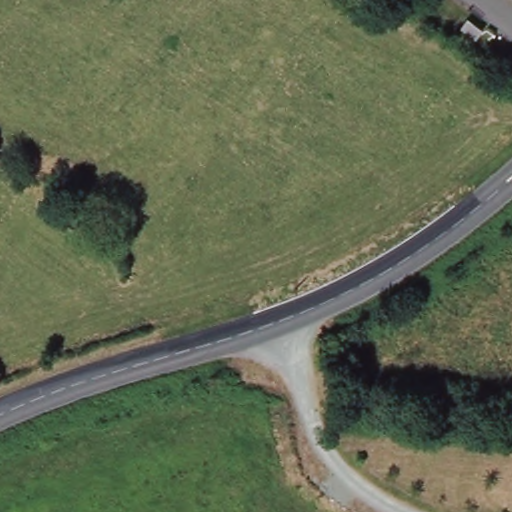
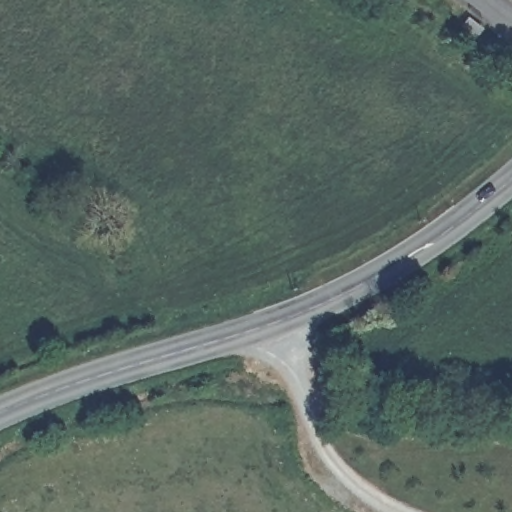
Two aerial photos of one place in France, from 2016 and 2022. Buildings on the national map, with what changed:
[]

